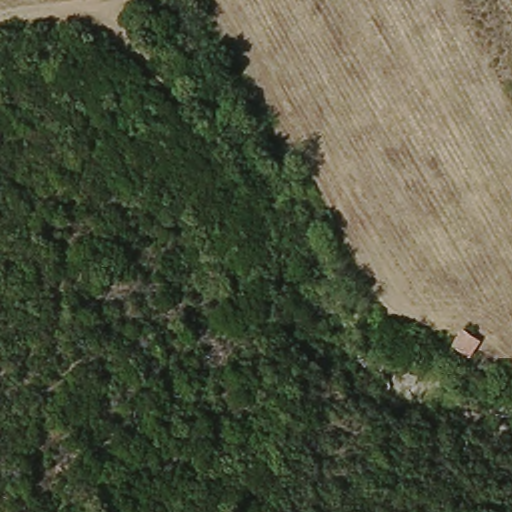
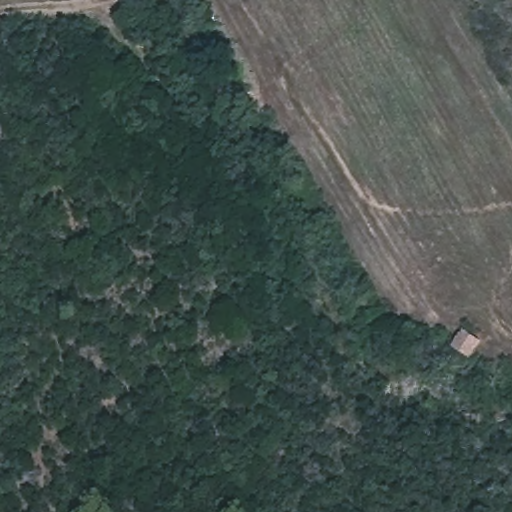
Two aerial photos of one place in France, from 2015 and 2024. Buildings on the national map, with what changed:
unchanged [(453,345),(460,332),(475,339),(465,353),(453,345)]

